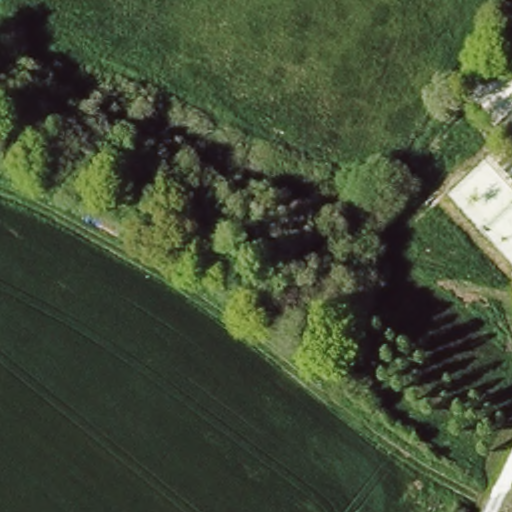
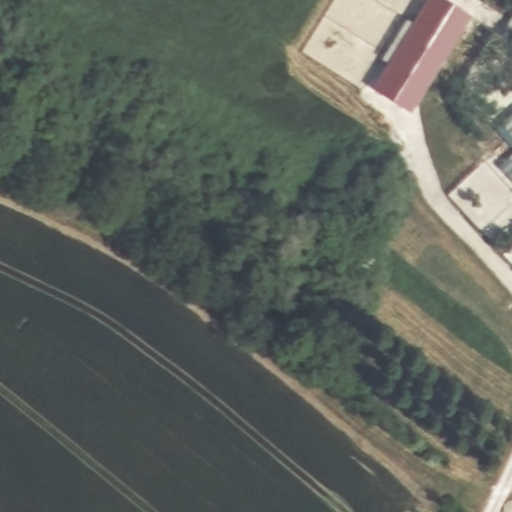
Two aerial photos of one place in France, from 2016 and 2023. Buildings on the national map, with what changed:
new [(473,16),(415,113),(373,90),(427,0),(447,0),(473,16)]
unchanged [(512,7),(512,46),(496,38),(512,7)]
unchanged [(512,113),(512,151),(494,132),(512,113)]

